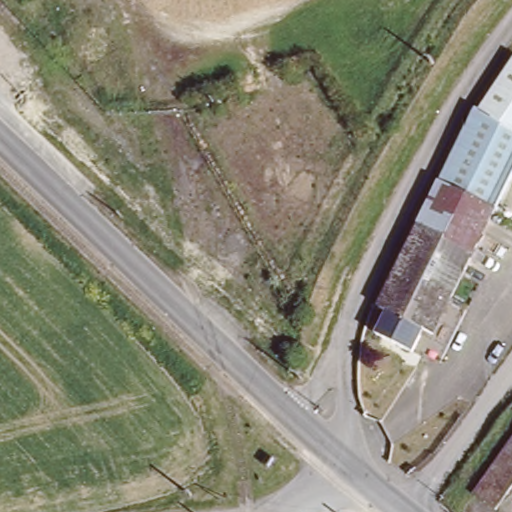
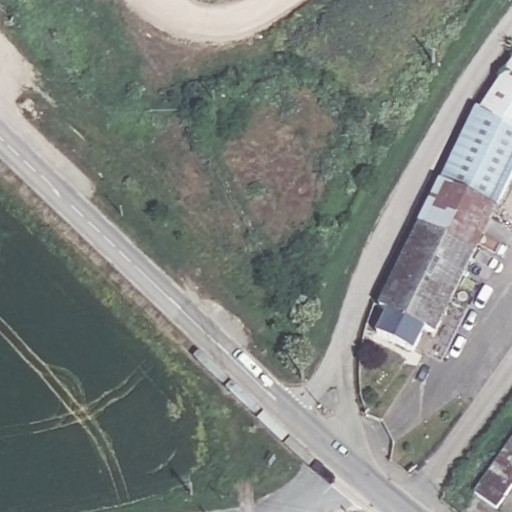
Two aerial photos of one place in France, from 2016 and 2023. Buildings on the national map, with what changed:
unchanged [(512,51),(512,126),(477,104),(512,51)]
unchanged [(417,324),(405,347),(370,331),(380,307),(370,302),(425,198),(460,131),(477,104),(512,126),(512,160),(425,327),(417,324)]
unchanged [(472,494),(512,436),(512,484),(493,510),(472,494)]

